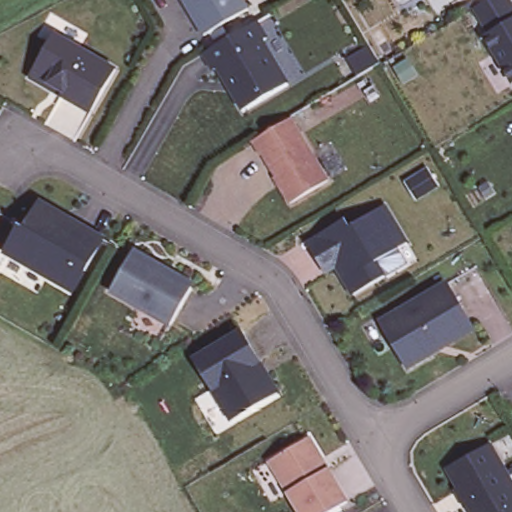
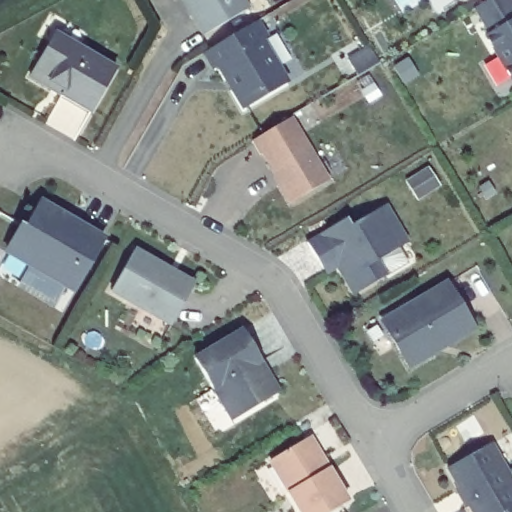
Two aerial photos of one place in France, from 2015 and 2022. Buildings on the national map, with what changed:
unchanged [(204,36),(183,0),(244,0),(250,10),(204,36)]
unchanged [(485,38),(491,34),(476,11),(495,0),(508,0),(512,6),(512,82),(485,38)]
unchanged [(219,69),(214,71),(204,54),(257,24),(268,40),(263,43),(288,85),(244,111),(232,91),(227,83),(219,69)]
unchanged [(30,79),(55,35),(117,70),(91,114),(61,96),(48,89),(30,79)]
unchanged [(363,79),(353,62),(374,49),(384,66),(363,79)]
unchanged [(329,182),(293,204),(264,155),(260,156),(253,144),(293,120),(329,182)]
unchanged [(66,289),(48,279),(30,269),(6,255),(21,228),(26,230),(40,204),(61,216),(79,225),(104,240),(86,272),(74,293),(66,289)]
unchanged [(404,244),(373,263),(381,278),(350,297),(329,262),(318,269),(302,244),(341,220),(346,229),(381,207),(404,244)]
unchanged [(176,275),(191,284),(191,292),(171,328),(111,293),(135,252),(165,269),(176,275)]
unchanged [(472,325),(428,353),(431,357),(411,369),(382,324),(448,284),(472,325)]
unchanged [(275,396),(233,422),(213,391),(196,361),(242,332),(261,364),(279,394),(275,396)]
unchanged [(317,454),(323,464),(344,499),(320,512),(299,512),(266,458),(300,438),(308,438),(317,454)]
unchanged [(469,507),(466,508),(456,492),(459,490),(448,471),(491,446),(512,482),(512,512),(472,512),(469,507)]

